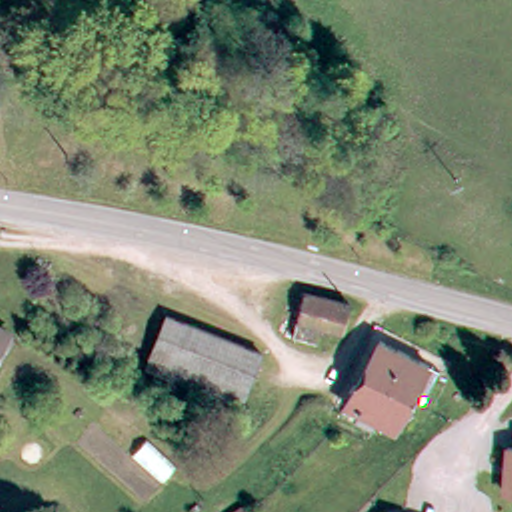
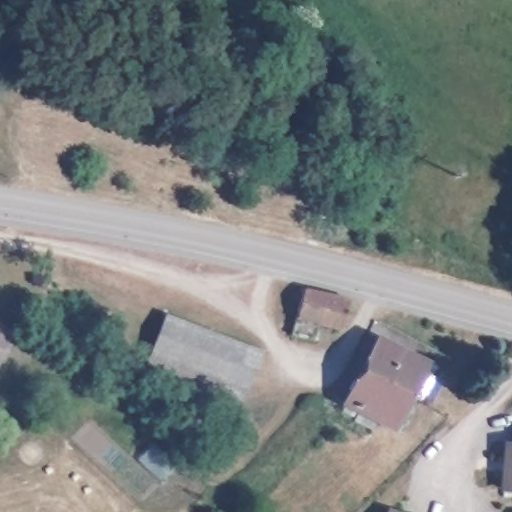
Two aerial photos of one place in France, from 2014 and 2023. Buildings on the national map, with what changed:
unchanged [(296,285),(348,294),(347,324),(322,325),(316,336),(296,336),(296,285)]
unchanged [(0,337),(0,314),(9,318),(0,337)]
unchanged [(151,351),(163,318),(257,348),(241,400),(148,372),(156,353),(151,351)]
unchanged [(424,362),(398,404),(405,408),(399,417),(392,412),(387,420),(370,408),(361,421),(340,409),(385,338),(424,362)]
unchanged [(506,484),(509,438),(512,438),(512,484),(506,484)]

